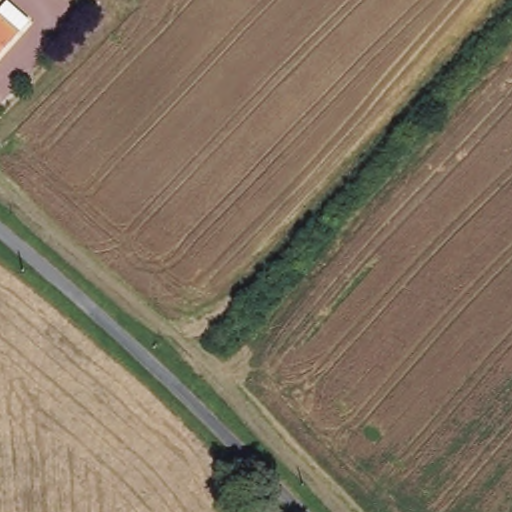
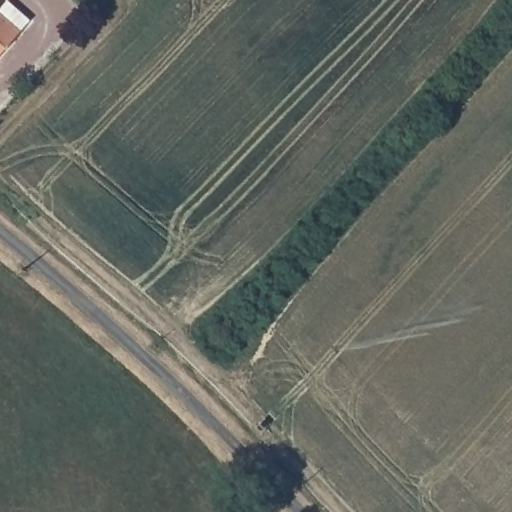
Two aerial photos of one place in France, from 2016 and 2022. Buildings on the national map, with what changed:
unchanged [(0,58),(0,12),(6,6),(29,25),(0,58)]

